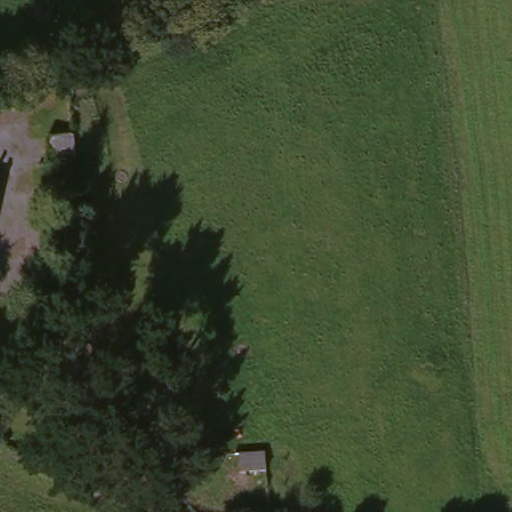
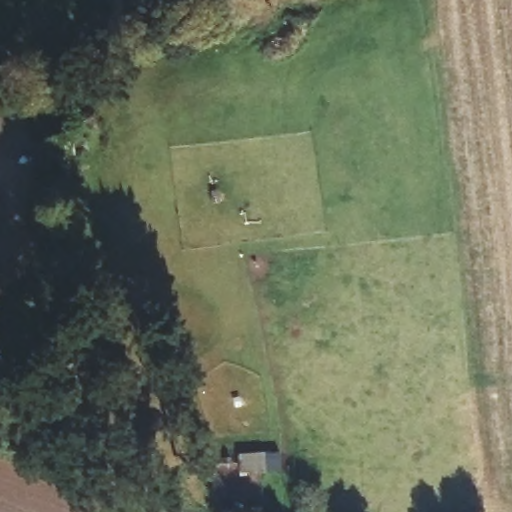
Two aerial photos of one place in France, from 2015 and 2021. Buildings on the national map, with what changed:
unchanged [(46,163),(41,128),(66,124),(72,160),(46,163)]
unchanged [(259,474),(234,477),(233,456),(257,457),(259,474)]

